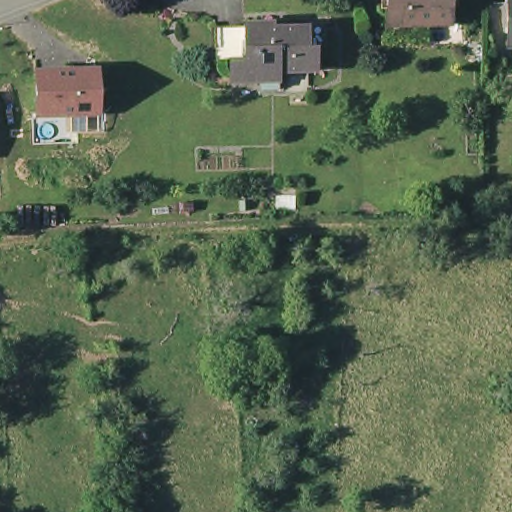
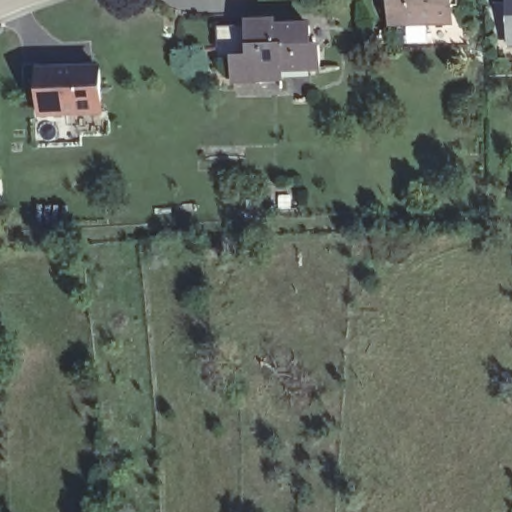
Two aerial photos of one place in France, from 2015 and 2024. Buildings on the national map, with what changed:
unchanged [(390,24),(389,7),(389,0),(452,0),(453,5),(450,5),(451,23),(429,23),(430,39),(390,40),(390,24)]
unchanged [(504,21),(510,21),(510,0),(512,0),(512,50),(504,50),(504,41),(504,21)]
unchanged [(280,26),(280,32),(316,31),(316,51),(326,51),(326,74),(318,74),(268,76),(268,84),(242,85),(238,85),(237,64),(225,65),(224,32),(252,31),(251,27),(280,26)]
unchanged [(102,66),(102,116),(38,119),(39,68),(102,66)]

